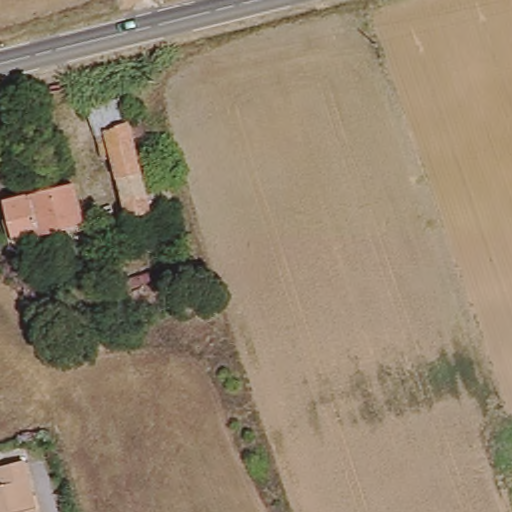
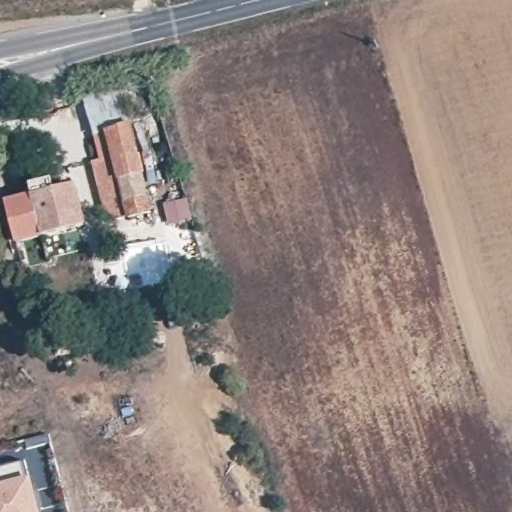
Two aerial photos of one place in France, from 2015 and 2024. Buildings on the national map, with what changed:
unchanged [(121,165),(112,168),(97,115),(130,106),(152,186),(173,183),(179,204),(158,210),(161,219),(137,226),(121,165)]
unchanged [(10,200),(78,182),(89,221),(20,239),(10,200)]
unchanged [(3,484),(0,474),(0,466),(33,458),(47,512),(0,512),(0,485),(3,484)]

